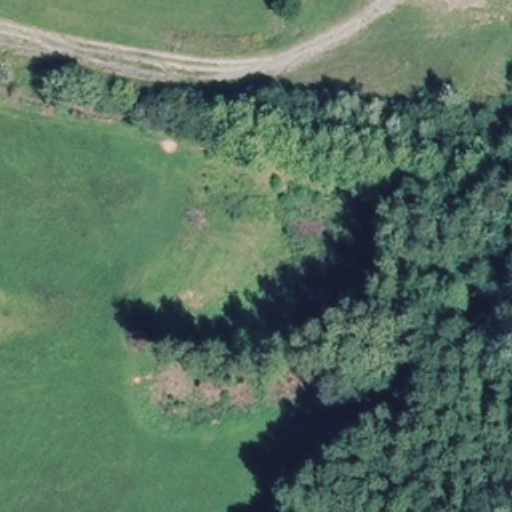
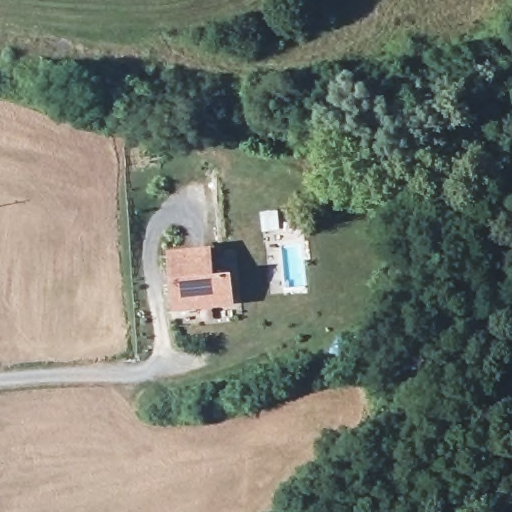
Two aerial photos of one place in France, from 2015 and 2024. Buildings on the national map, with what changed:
new [(212,244),(214,269),(232,269),(235,305),(183,309),(183,318),(174,318),(168,249),(212,244)]

